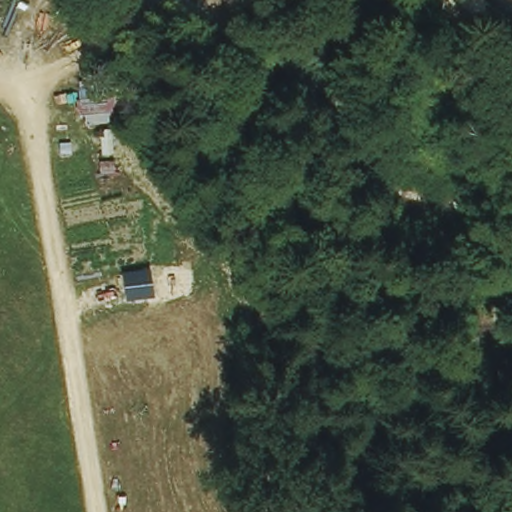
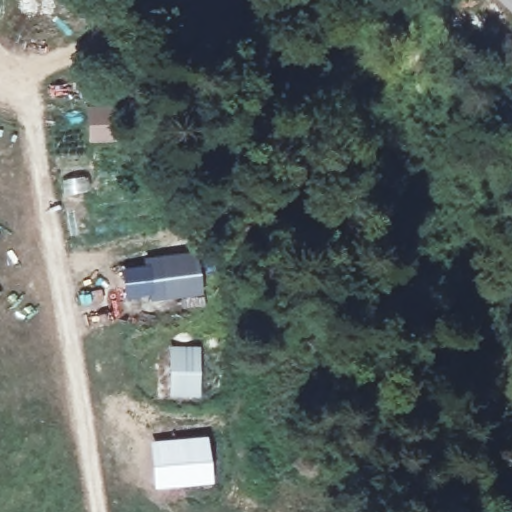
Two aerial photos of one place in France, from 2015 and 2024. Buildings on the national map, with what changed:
new [(143,262),(143,257),(195,249),(202,292),(151,301),(150,293),(124,298),(119,266),(143,262)]
new [(200,345),(200,398),(167,397),(168,345),(200,345)]
new [(203,436),(208,482),(153,488),(148,442),(203,436)]

